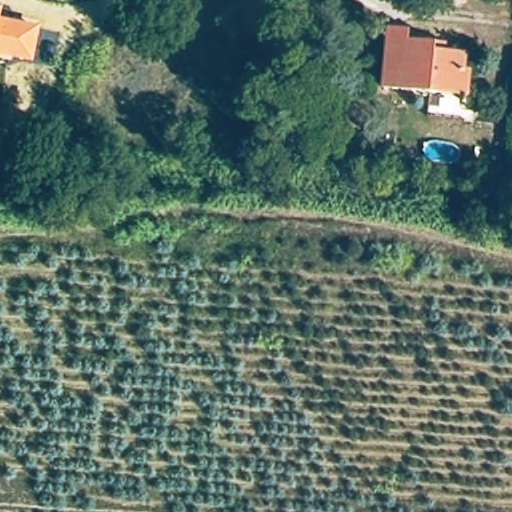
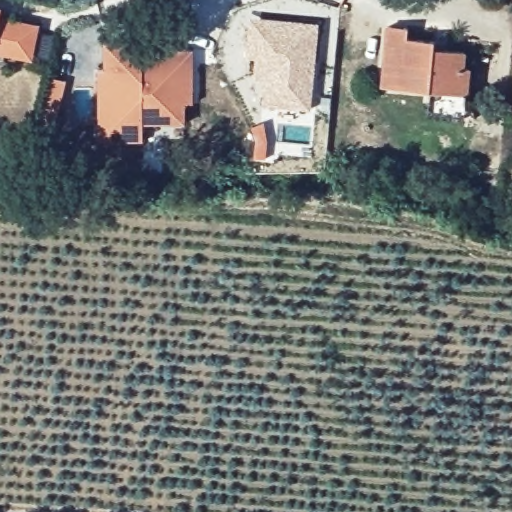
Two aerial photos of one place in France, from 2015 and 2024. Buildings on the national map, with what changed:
unchanged [(0,56),(0,8),(3,9),(0,18),(41,26),(33,63),(0,56)]
new [(249,15),(319,23),(310,110),(259,104),(260,83),(254,82),(256,59),(243,58),(249,15)]
unchanged [(407,39),(434,41),(434,49),(464,52),(463,68),(471,69),(469,95),(382,88),(388,26),(408,28),(407,39)]
new [(103,70),(104,43),(145,45),(145,50),(193,51),(192,104),(184,103),(182,125),(143,124),(143,143),(98,142),(98,70),(103,70)]
new [(264,123),(267,141),(266,160),(251,159),(253,139),(248,127),(264,123)]

